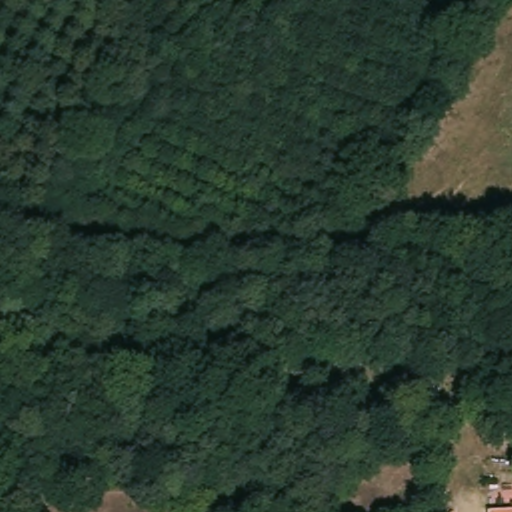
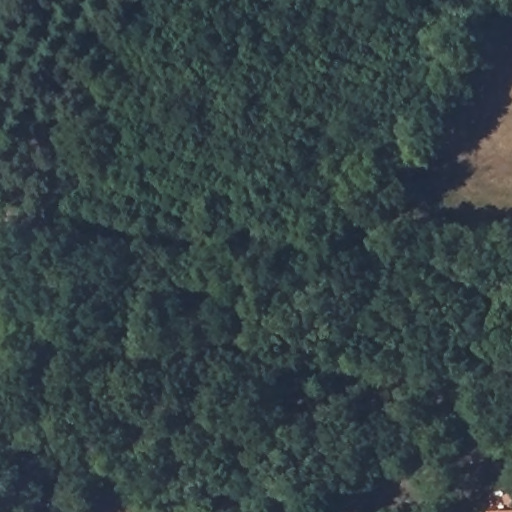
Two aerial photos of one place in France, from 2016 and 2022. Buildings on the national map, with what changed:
unchanged [(503,512),(503,510),(512,510),(512,512),(503,512)]

